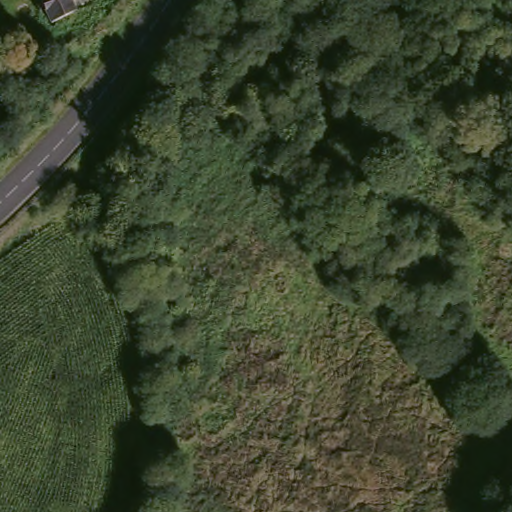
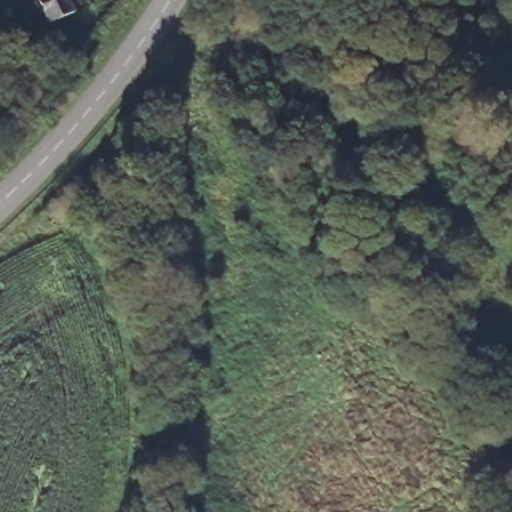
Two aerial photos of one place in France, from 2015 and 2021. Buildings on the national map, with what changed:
unchanged [(45,14),(40,0),(65,0),(68,7),(45,14)]

